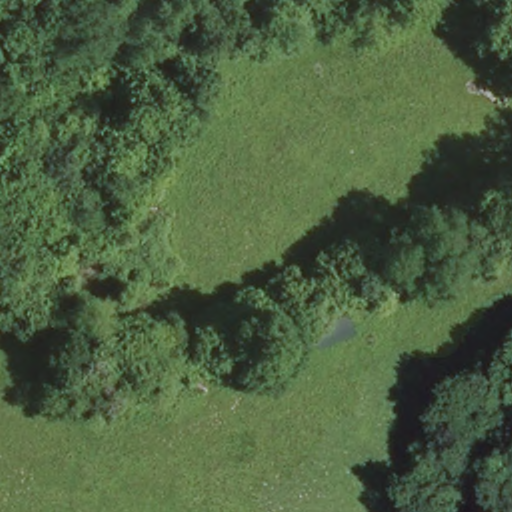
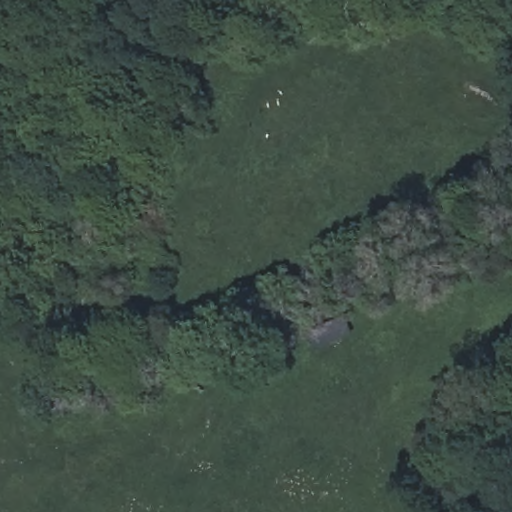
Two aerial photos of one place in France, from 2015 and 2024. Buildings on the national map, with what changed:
[]

